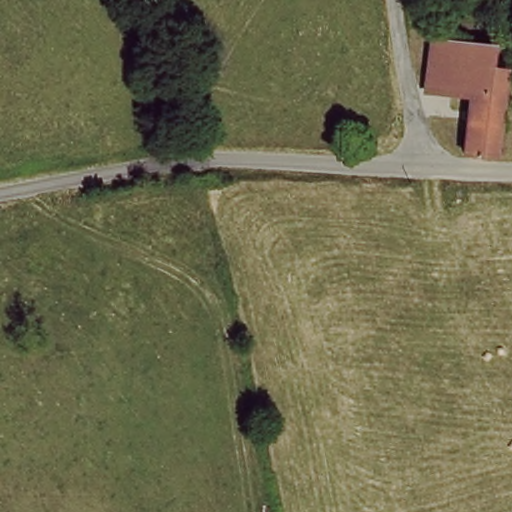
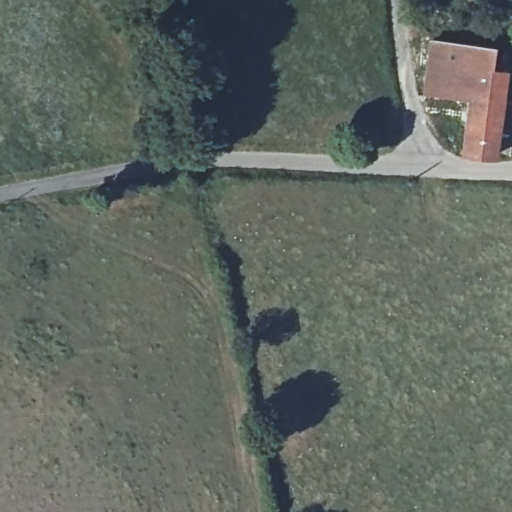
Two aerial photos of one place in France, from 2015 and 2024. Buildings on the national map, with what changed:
unchanged [(426,84),(436,40),(460,41),(453,88),(426,84)]
unchanged [(453,88),(460,41),(484,44),(473,91),(453,88)]
unchanged [(500,44),(498,66),(512,68),(512,88),(498,154),(473,154),(464,153),(462,152),(473,91),(484,44),(500,44)]

